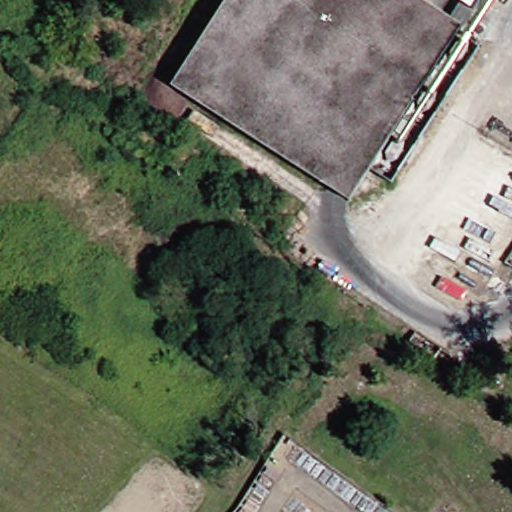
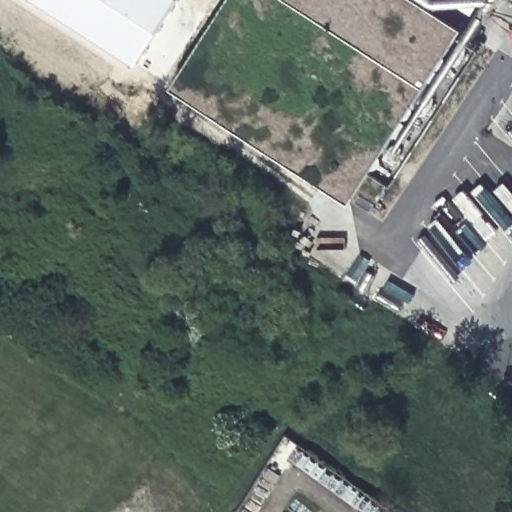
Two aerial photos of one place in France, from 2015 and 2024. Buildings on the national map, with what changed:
new [(138,64),(37,0),(179,0),(138,64)]
unchanged [(353,203),(174,85),(192,58),(230,0),(434,0),(468,22),(463,29),(486,45),(396,184),(375,171),(370,178),(353,203)]
unchanged [(470,9),(456,0),(476,0),(470,9)]

